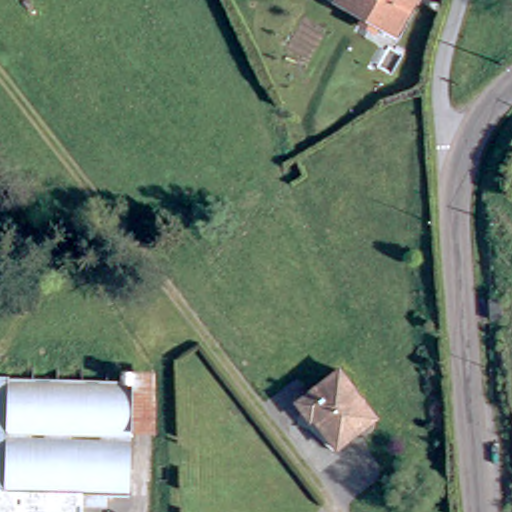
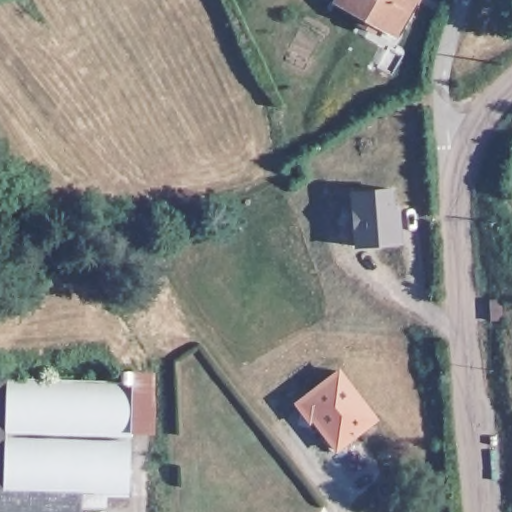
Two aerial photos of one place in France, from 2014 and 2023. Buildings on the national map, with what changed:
unchanged [(385,20),(380,29),(362,21),(367,10),(347,0),(415,0),(401,27),(385,20)]
new [(401,206),(403,243),(355,247),(350,189),(396,187),(397,206),(401,206)]
unchanged [(493,304),(481,305),(480,285),(492,284),(493,304)]
unchanged [(303,404),(295,393),(343,364),(375,417),(342,437),(345,442),(330,451),(305,419),(293,418),(296,409),(303,404)]
unchanged [(76,512),(0,512),(0,371),(120,376),(120,367),(131,368),(129,431),(127,492),(105,491),(105,502),(76,502),(76,512)]
unchanged [(154,369),(152,432),(129,431),(131,368),(154,369)]

